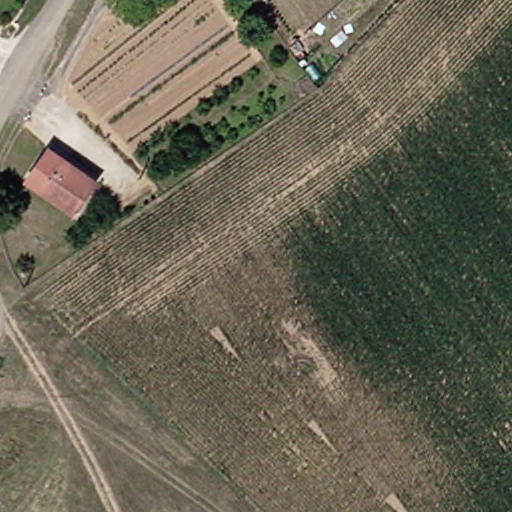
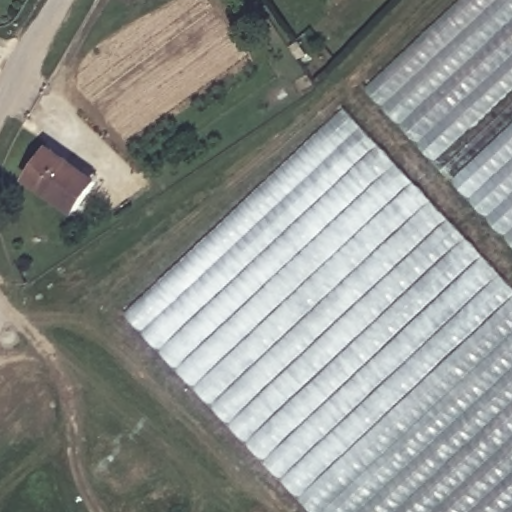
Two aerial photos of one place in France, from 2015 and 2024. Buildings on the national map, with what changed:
new [(369,89),(464,0),(512,0),(512,240),(369,89)]
new [(128,314),(345,109),(512,285),(512,512),(314,512),(128,314)]
unchanged [(96,180),(75,211),(28,179),(50,149),(96,180)]

